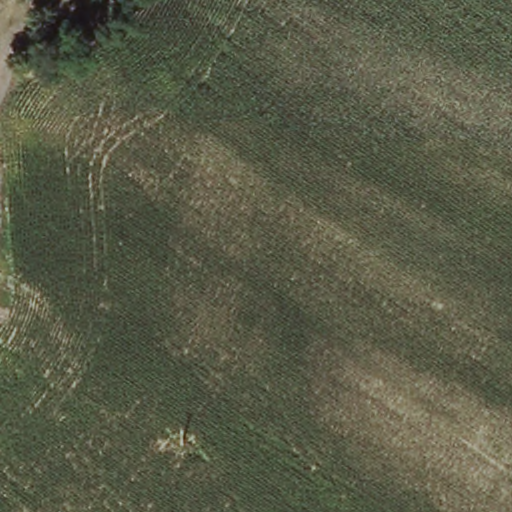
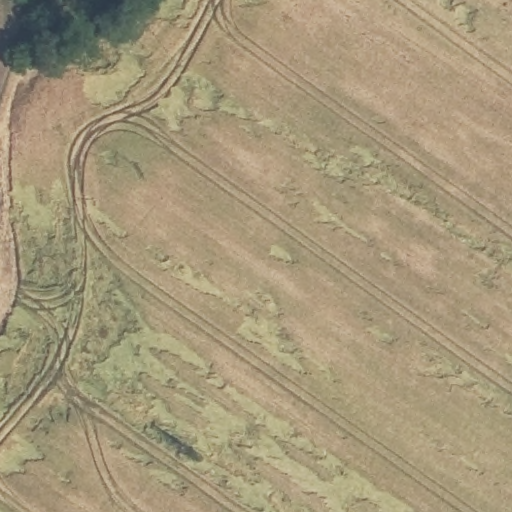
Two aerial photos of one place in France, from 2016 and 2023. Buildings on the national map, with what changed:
[]

